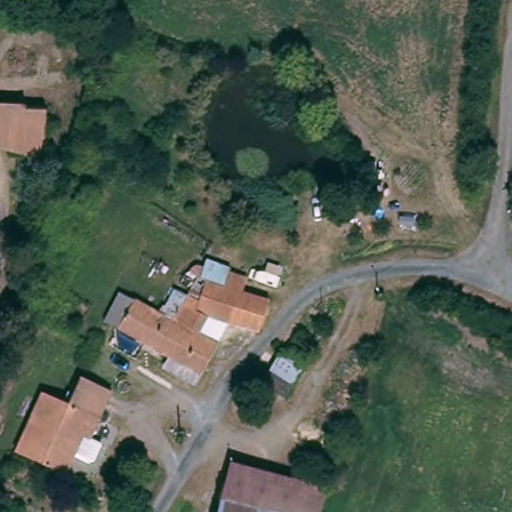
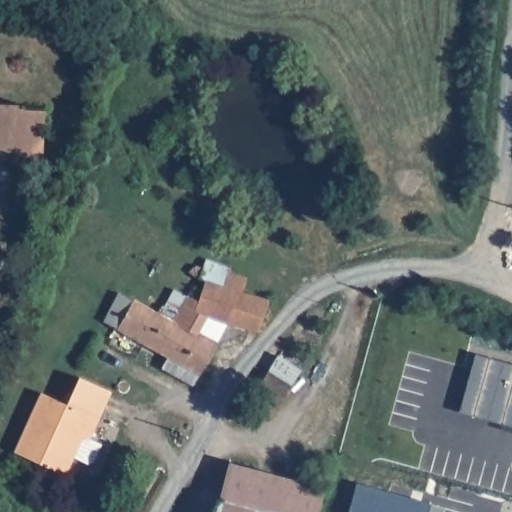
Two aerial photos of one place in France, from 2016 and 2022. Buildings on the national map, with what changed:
unchanged [(0,149),(0,104),(20,105),(31,110),(50,111),(47,160),(0,149)]
unchanged [(161,365),(167,354),(125,330),(139,299),(164,311),(168,303),(185,312),(192,295),(201,299),(214,274),(230,284),(235,273),(251,282),(245,295),(270,307),(260,333),(230,320),(217,341),(194,384),(161,365)]
unchanged [(311,367),(290,398),(270,385),(290,353),(301,360),(311,367)]
new [(512,363),(512,426),(458,411),(475,353),(512,363)]
unchanged [(46,391),(76,405),(82,393),(109,406),(95,437),(82,432),(72,451),(81,454),(72,475),(20,450),(46,391)]
unchanged [(325,485),(320,504),(319,512),(223,512),(233,464),(325,485)]
new [(431,512),(351,512),(358,485),(433,504),(431,512)]

